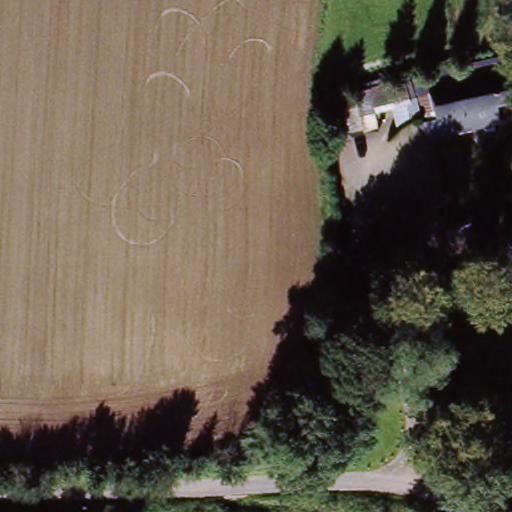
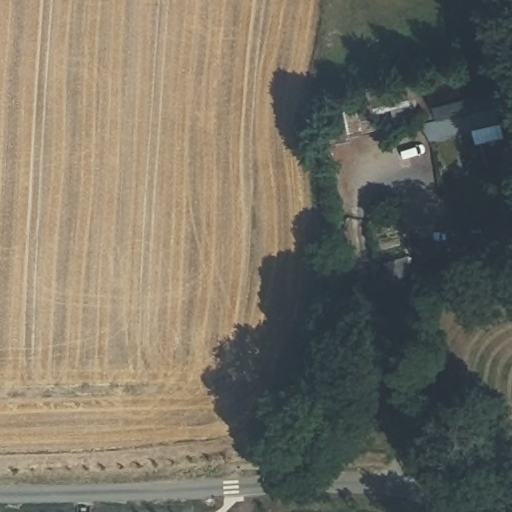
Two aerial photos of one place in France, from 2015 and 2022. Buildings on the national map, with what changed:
unchanged [(441,118),(435,92),(512,75),(512,102),(441,118)]
unchanged [(439,266),(387,283),(373,242),(426,226),(487,215),(493,249),(439,266)]

